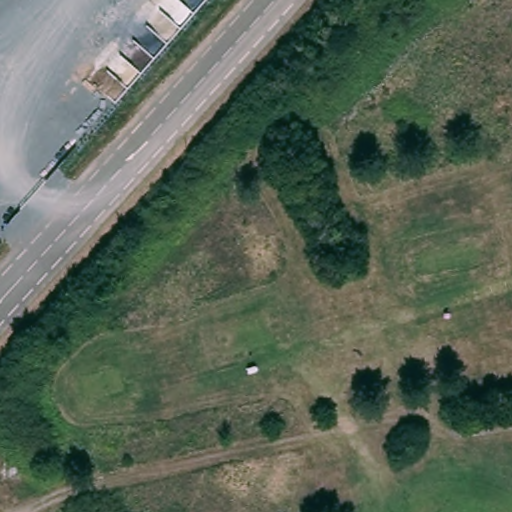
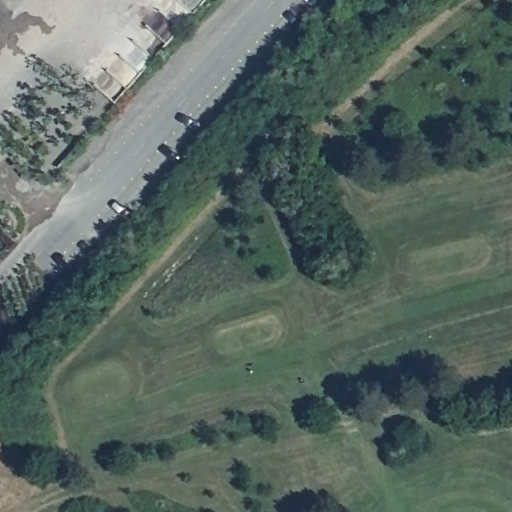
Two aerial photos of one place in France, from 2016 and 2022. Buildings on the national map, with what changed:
unchanged [(266,69),(277,81),(269,88),(258,78),(266,69)]

